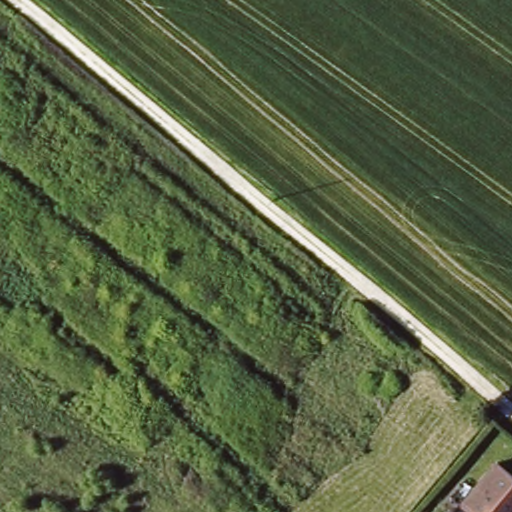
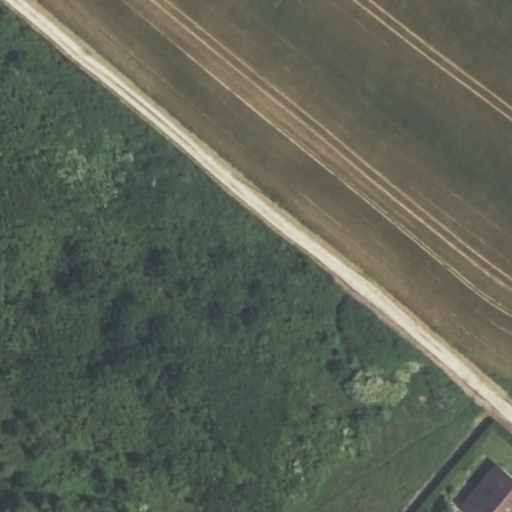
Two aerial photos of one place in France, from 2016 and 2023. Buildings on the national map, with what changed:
unchanged [(512,512),(507,512),(505,511),(505,512),(480,512),(466,502),(495,462),(512,474),(512,512)]

